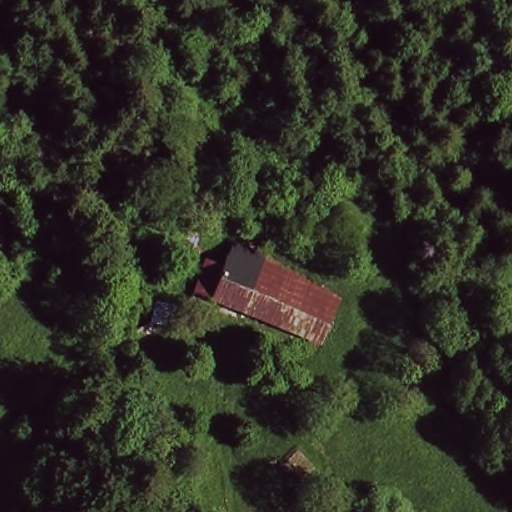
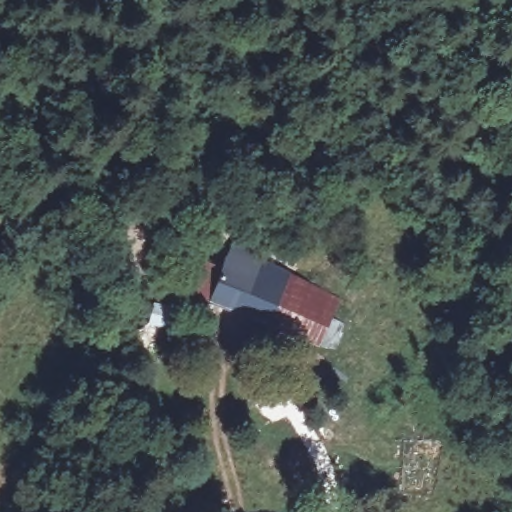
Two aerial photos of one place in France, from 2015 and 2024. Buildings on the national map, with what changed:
unchanged [(318,350),(207,304),(238,251),(343,299),(318,350)]
unchanged [(217,355),(213,375),(188,369),(194,349),(217,355)]

